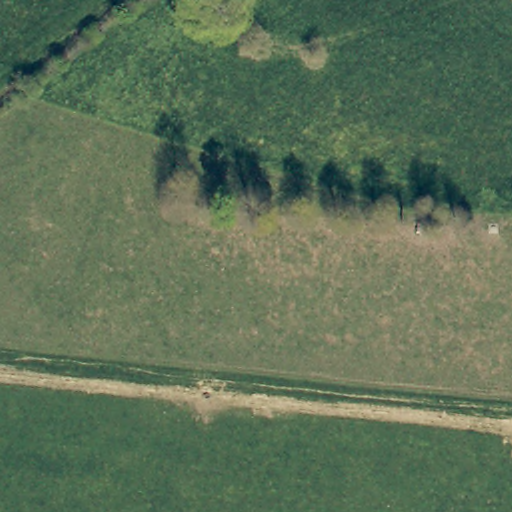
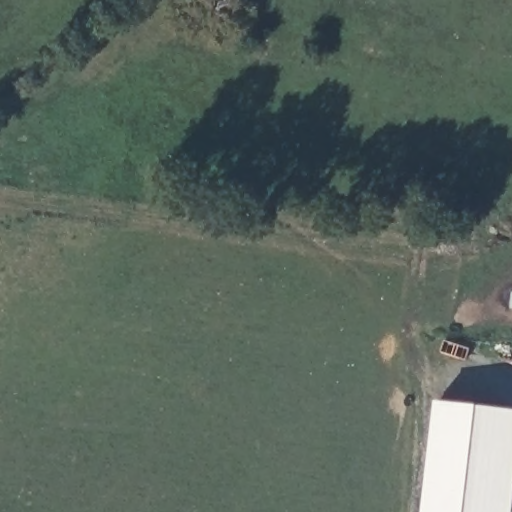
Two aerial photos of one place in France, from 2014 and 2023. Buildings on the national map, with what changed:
new [(434,404),(512,412),(512,489),(510,512),(423,512),(434,404)]

